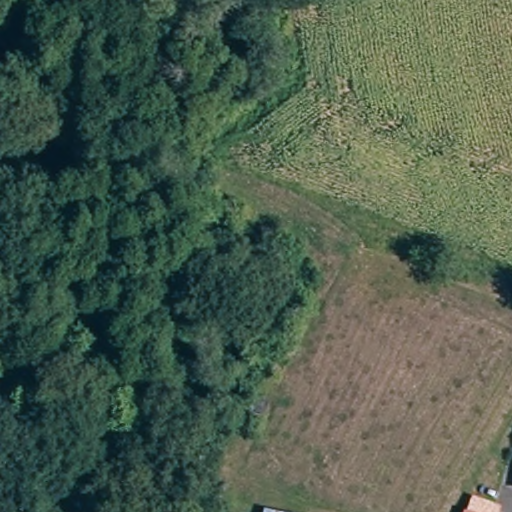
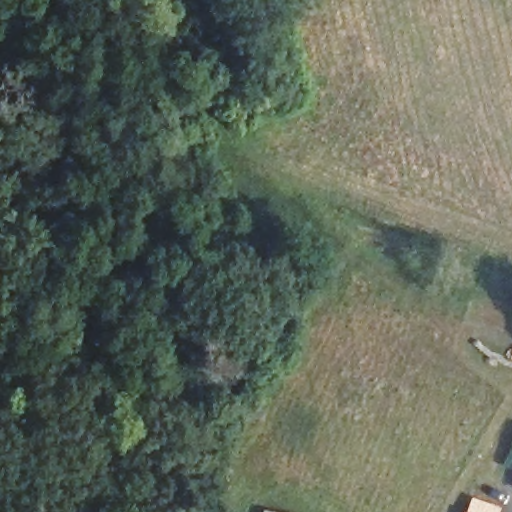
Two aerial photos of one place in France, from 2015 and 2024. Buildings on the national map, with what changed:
unchanged [(263,506),(287,512),(262,512),(263,506)]

